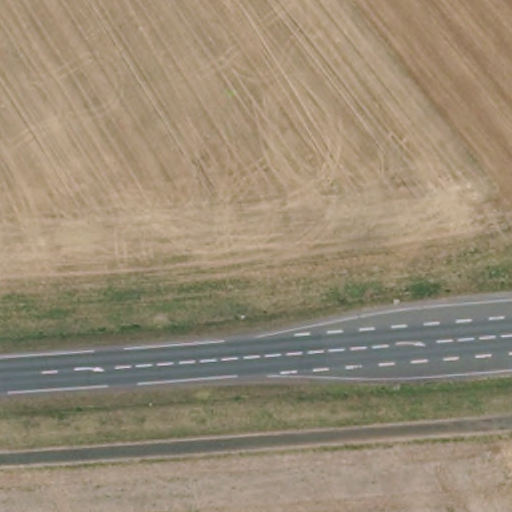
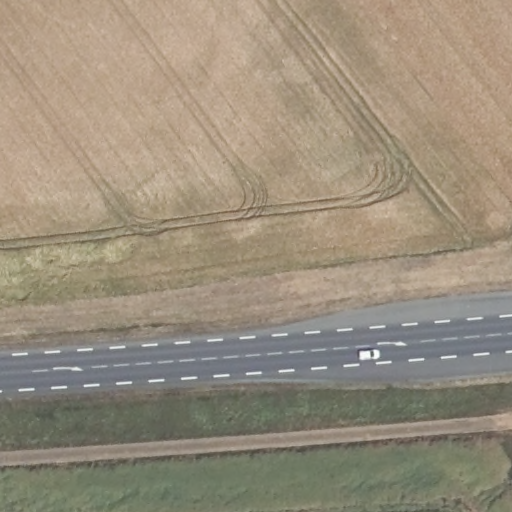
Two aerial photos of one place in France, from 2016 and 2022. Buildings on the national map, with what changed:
[]

